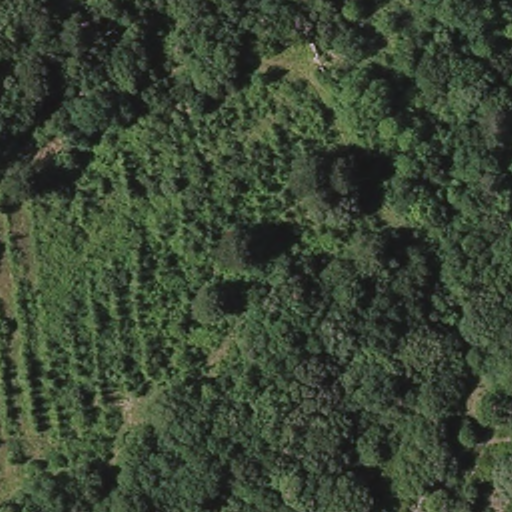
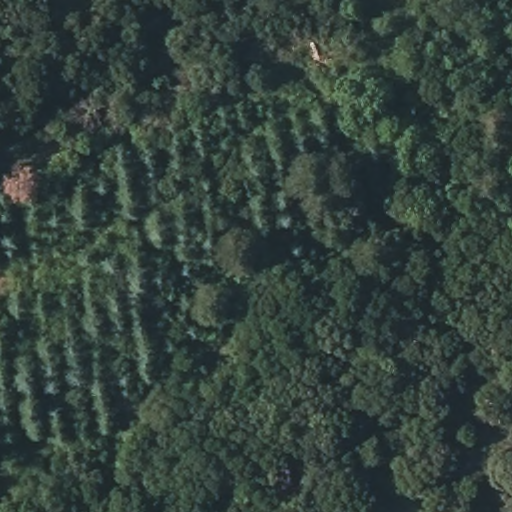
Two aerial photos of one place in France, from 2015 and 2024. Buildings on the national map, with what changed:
[]

